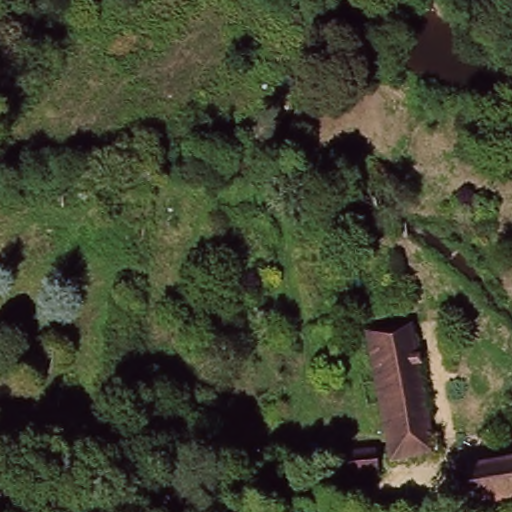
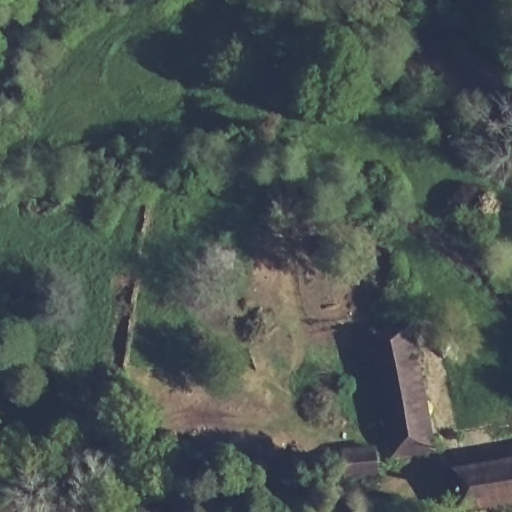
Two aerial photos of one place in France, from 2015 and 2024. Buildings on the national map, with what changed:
unchanged [(385,449),(362,335),(407,327),(430,454),(388,460),(385,449)]
unchanged [(367,478),(332,482),(331,475),(318,475),(317,461),(329,459),(328,455),(363,450),(367,478)]
unchanged [(448,467),(512,458),(512,499),(457,507),(448,467)]

